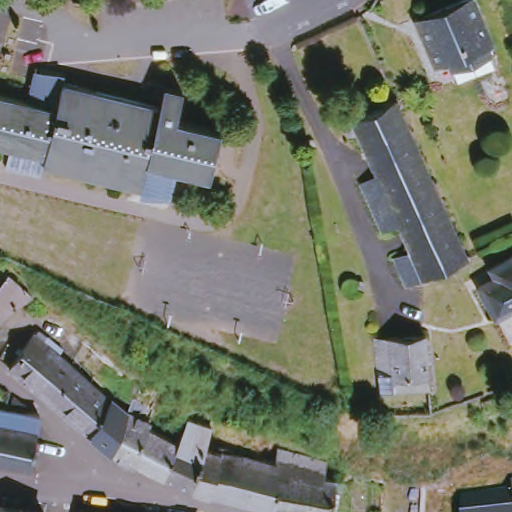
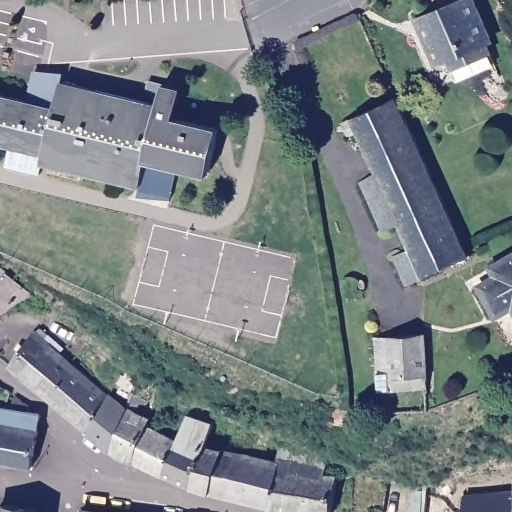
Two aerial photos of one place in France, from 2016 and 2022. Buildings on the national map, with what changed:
unchanged [(450,59),(437,65),(428,45),(415,15),(423,12),(453,0),(476,0),(490,35),(485,39),(490,50),(470,60),(453,67),(450,59)]
unchanged [(0,143),(0,96),(50,109),(57,82),(152,107),(157,85),(177,90),(168,120),(195,127),(212,131),(200,177),(199,177),(138,161),(132,186),(36,161),(33,172),(0,163),(0,159),(4,144),(0,143)]
unchanged [(402,282),(390,254),(405,247),(395,224),(378,229),(355,179),(370,171),(352,132),(343,135),(337,121),(392,97),(464,255),(402,282)]
unchanged [(312,147),(311,147),(310,147),(309,147),(308,146),(307,145),(307,144),(307,143),(307,142),(307,140),(308,139),(309,138),(310,137),(312,137),(313,138),(314,138),(315,139),(315,140),(316,140),(316,141),(317,142),(317,143),(317,144),(316,145),(315,145),(315,146),(314,147),(313,147),(312,147)]
unchanged [(492,315),(475,285),(490,277),(485,268),(500,260),(512,253),(512,311),(510,306),(492,315)]
unchanged [(0,308),(0,269),(7,274),(8,272),(14,277),(12,278),(27,292),(0,308)]
unchanged [(359,277),(360,277),(362,277),(363,277),(365,278),(365,279),(365,280),(366,281),(365,283),(365,284),(365,285),(364,285),(363,285),(362,286),(360,285),(359,285),(358,285),(358,284),(357,282),(357,281),(359,277)]
unchanged [(427,331),(430,384),(380,387),(377,335),(427,331)]
unchanged [(140,417),(147,420),(144,429),(130,462),(107,450),(85,433),(5,368),(30,336),(32,338),(35,335),(60,355),(57,357),(107,398),(123,410),(129,397),(145,402),(140,417)]
unchanged [(27,465),(15,462),(13,466),(0,464),(0,405),(7,406),(12,393),(25,404),(25,410),(35,412),(37,412),(27,465)]
unchanged [(209,426),(202,449),(188,490),(160,477),(174,442),(183,417),(209,426)]
unchanged [(144,429),(174,442),(160,477),(130,462),(144,429)]
unchanged [(202,449),(273,465),(276,452),(324,463),(322,476),(333,480),(329,512),(278,512),(271,511),(188,490),(202,449)]
unchanged [(460,498),(461,495),(512,490),(512,512),(418,512),(420,488),(460,498)]
unchanged [(31,512),(1,512),(2,506),(31,512)]
unchanged [(87,512),(74,512),(75,510),(87,512)]

